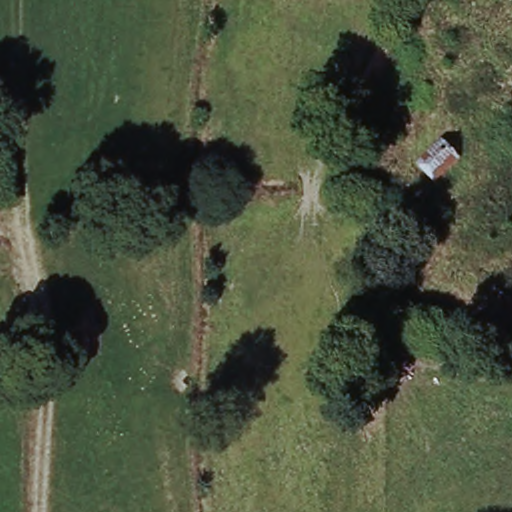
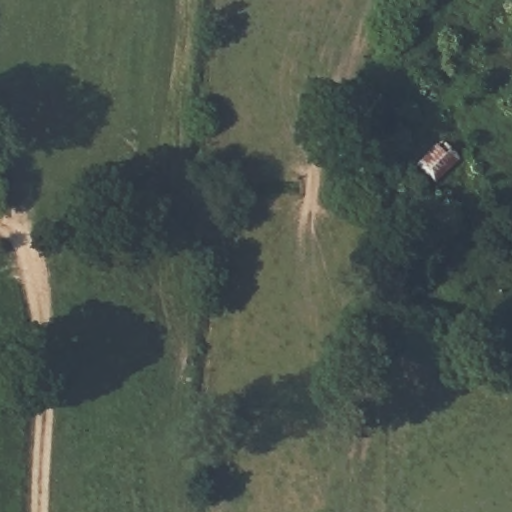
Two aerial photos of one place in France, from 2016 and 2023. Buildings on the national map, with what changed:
unchanged [(442,135),(463,154),(436,181),(417,162),(442,135)]

